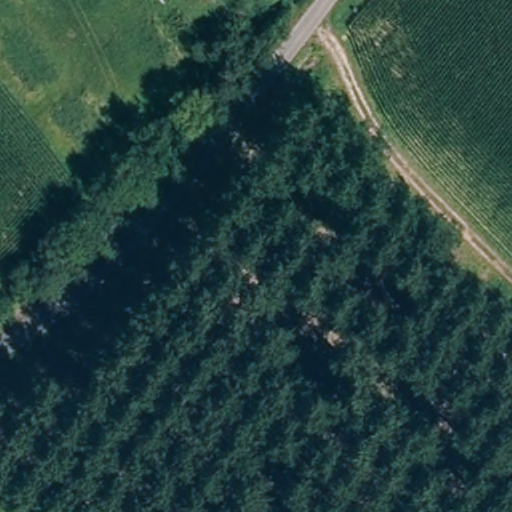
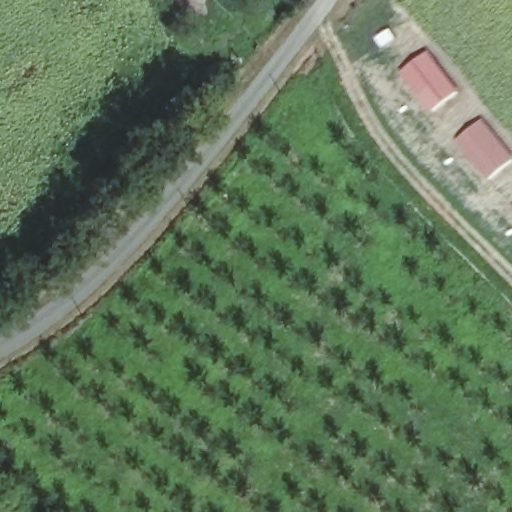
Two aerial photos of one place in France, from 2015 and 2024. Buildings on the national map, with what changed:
unchanged [(72,18),(50,0),(88,0),(72,18)]
unchanged [(34,19),(58,42),(21,77),(0,53),(0,50),(34,19)]
unchanged [(163,58),(125,90),(104,64),(141,33),(163,58)]
new [(428,51),(459,90),(430,112),(400,72),(428,51)]
unchanged [(100,113),(63,149),(41,122),(78,89),(100,113)]
new [(512,158),(512,159),(487,180),(456,141),(482,119),(512,158)]
unchanged [(4,205),(0,200),(0,165),(20,148),(42,173),(4,205)]

